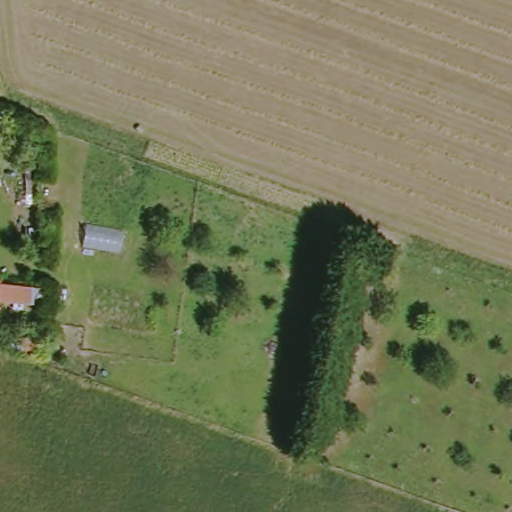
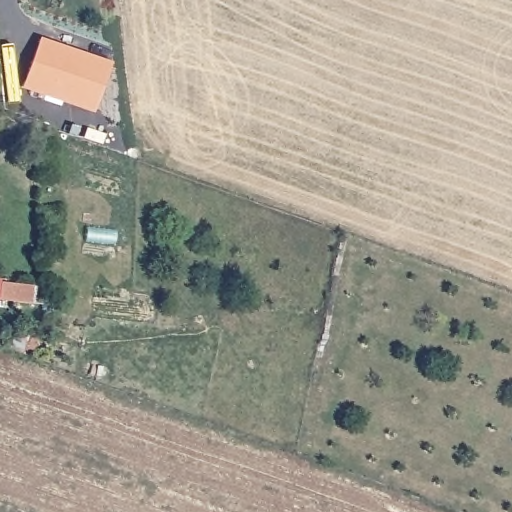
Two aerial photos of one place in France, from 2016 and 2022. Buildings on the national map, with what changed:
new [(22,87),(42,37),(111,62),(93,114),(22,87)]
unchanged [(1,300),(2,283),(33,285),(45,286),(45,305),(32,302),(1,300)]

